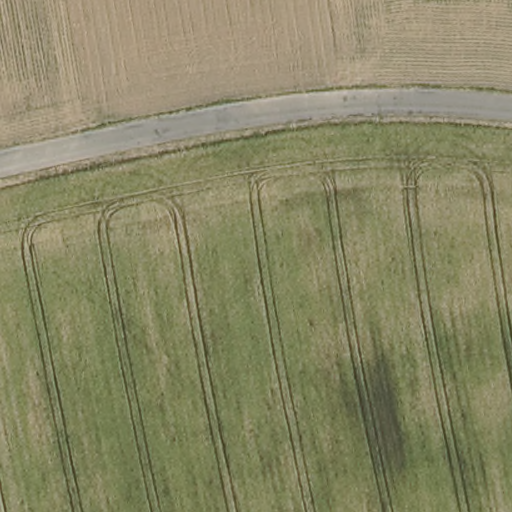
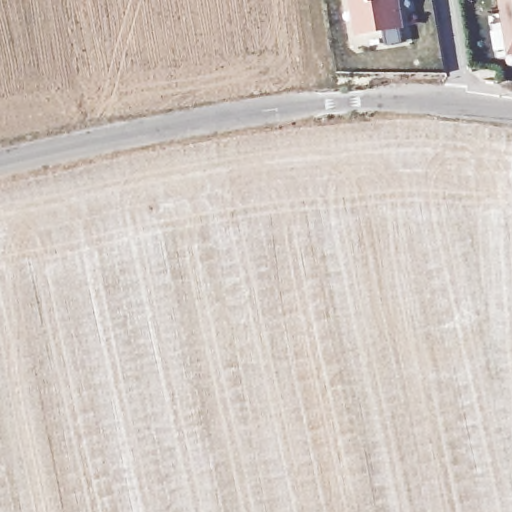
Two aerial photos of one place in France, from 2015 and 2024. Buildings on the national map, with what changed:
new [(400,29),(357,34),(352,0),(396,0),(400,29)]
new [(512,48),(509,48),(508,28),(500,28),(499,0),(512,0),(512,48)]

